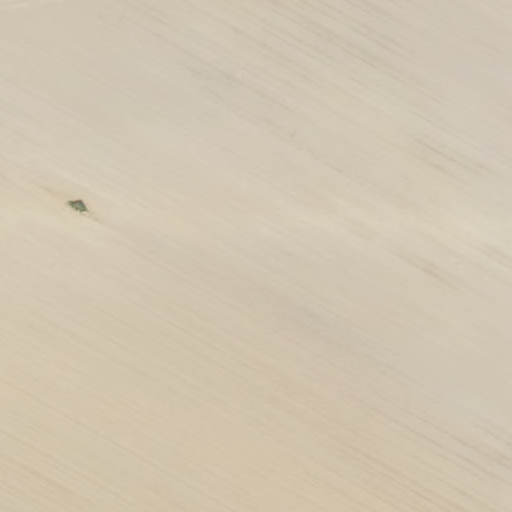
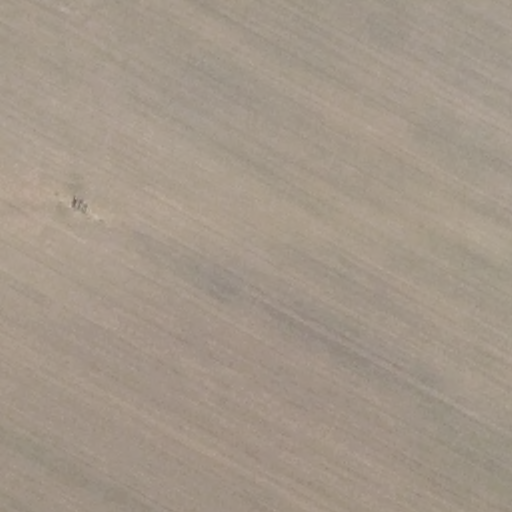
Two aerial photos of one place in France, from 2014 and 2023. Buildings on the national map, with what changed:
[]

